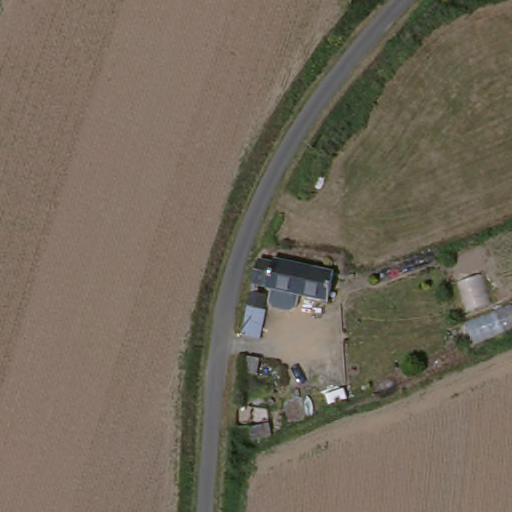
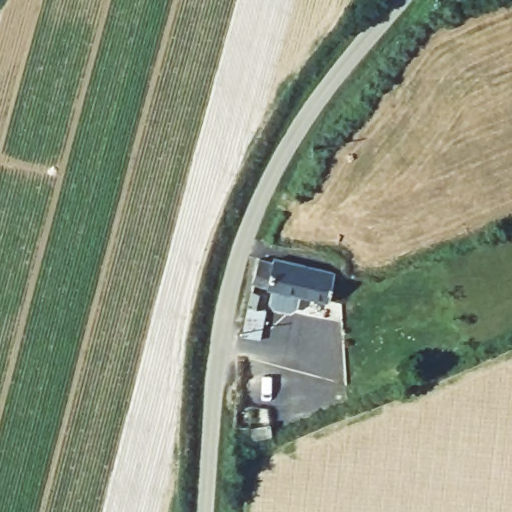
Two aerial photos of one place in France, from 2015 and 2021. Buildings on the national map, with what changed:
unchanged [(272,257),(275,255),(333,270),(328,297),(267,285),(267,281),(255,277),(257,266),(260,254),(272,257)]
unchanged [(254,286),(267,287),(263,335),(247,332),(254,286)]
unchanged [(242,401),(258,401),(257,422),(240,421),(242,401)]

